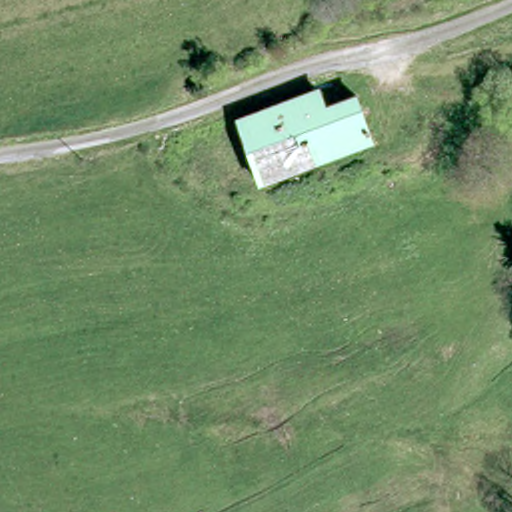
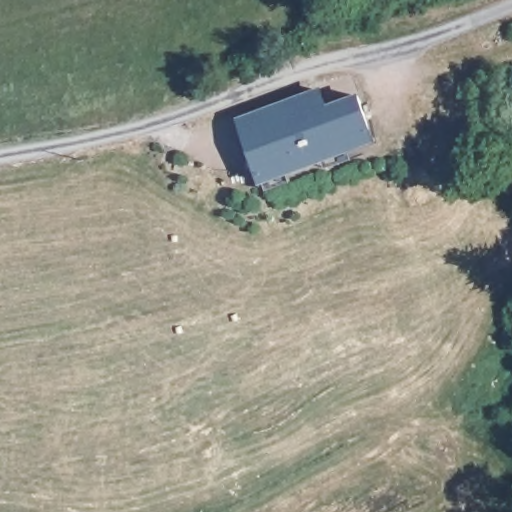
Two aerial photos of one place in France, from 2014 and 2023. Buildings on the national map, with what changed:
unchanged [(317,85),(324,103),(356,93),(372,137),(261,175),(236,115),(317,85)]

